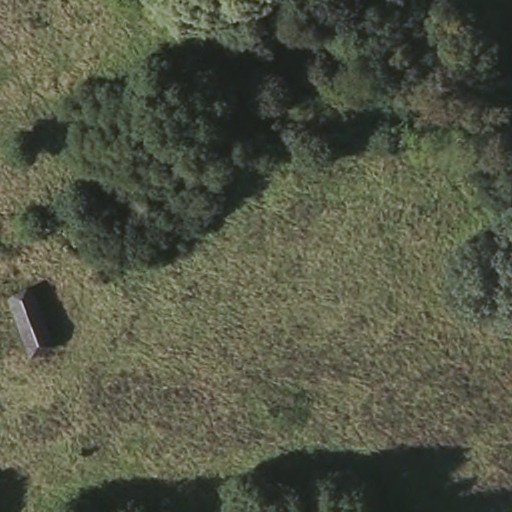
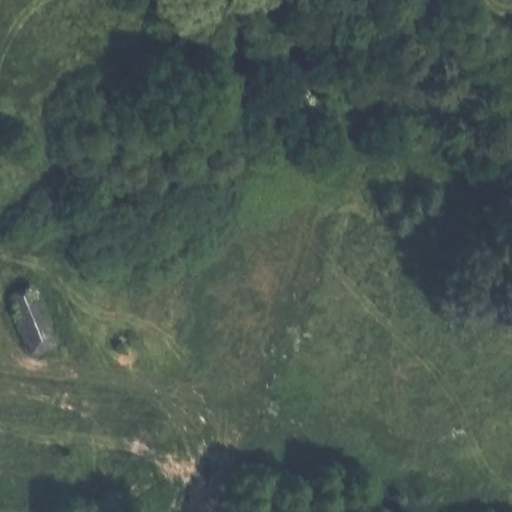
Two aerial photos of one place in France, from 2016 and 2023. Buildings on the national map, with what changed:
unchanged [(37,287),(53,346),(29,352),(12,295),(37,287)]

